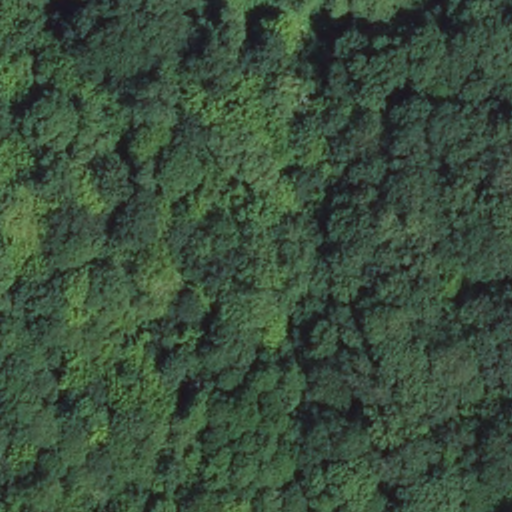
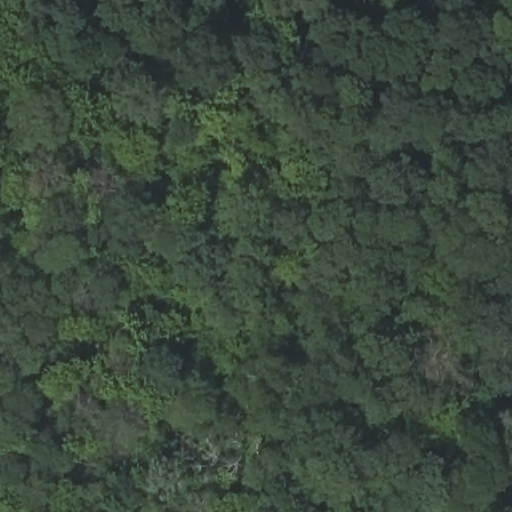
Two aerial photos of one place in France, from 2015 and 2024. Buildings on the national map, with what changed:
unchanged [(501,53),(479,45),(483,34),(505,41),(501,53)]

